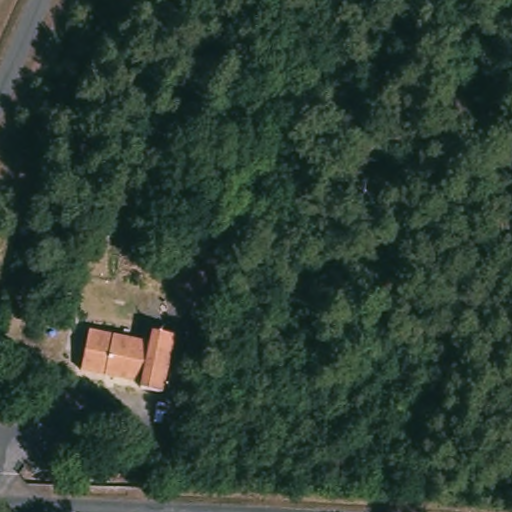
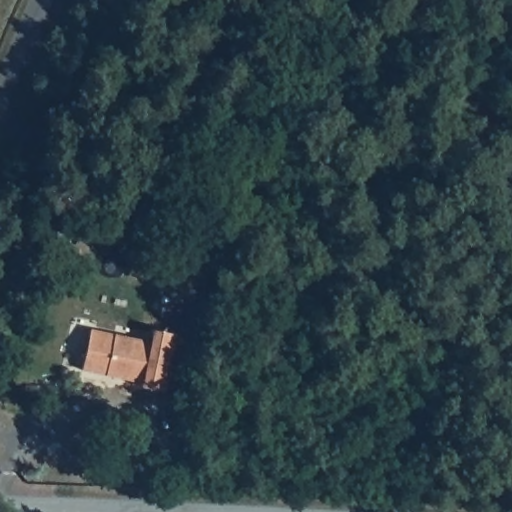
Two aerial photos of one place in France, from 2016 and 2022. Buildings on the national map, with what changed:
unchanged [(174,275),(164,299),(134,285),(143,263),(174,275)]
unchanged [(83,374),(89,331),(97,333),(148,340),(151,328),(171,333),(162,387),(86,375),(83,374)]

